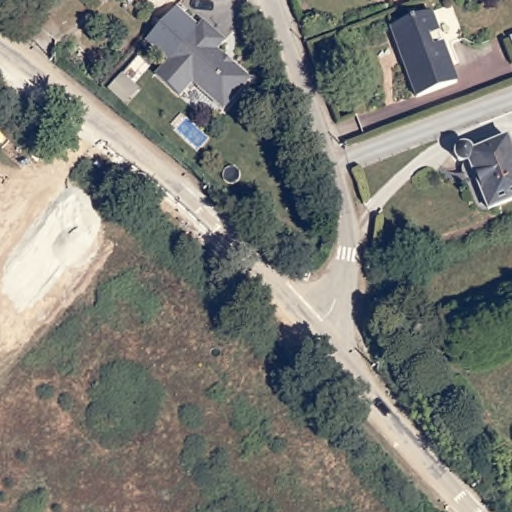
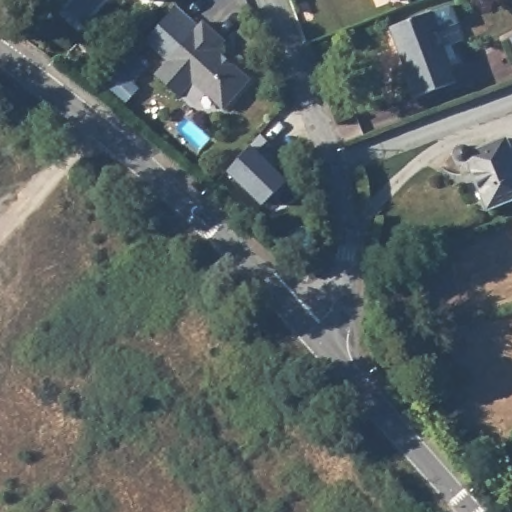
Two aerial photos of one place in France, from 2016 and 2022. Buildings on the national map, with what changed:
unchanged [(378,0),(393,0),(379,5),(378,0)]
unchanged [(447,7),(461,40),(442,49),(453,80),(416,94),(389,29),(447,7)]
unchanged [(177,53),(175,51),(164,51),(161,55),(147,42),(177,9),(199,29),(204,24),(224,42),(217,51),(224,57),(220,60),(229,66),(233,65),(245,76),(245,87),(222,112),(191,85),(178,99),(155,77),(177,53)]
new [(258,135),(276,147),(263,161),(285,181),(262,207),(225,174),(258,135)]
unchanged [(512,158),(512,195),(484,206),(462,150),(503,135),(512,158)]

